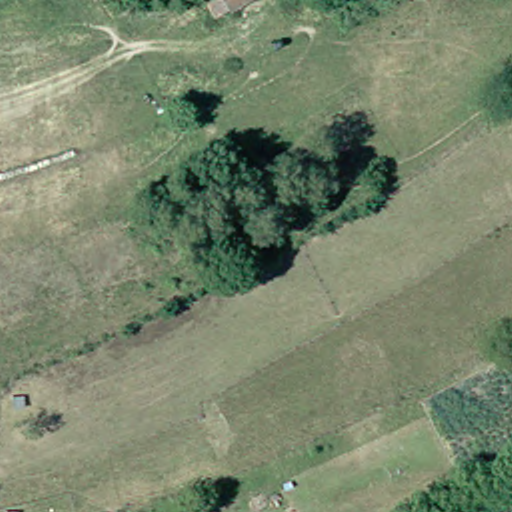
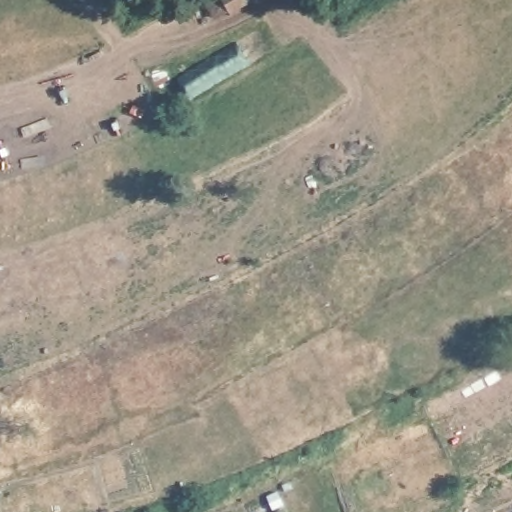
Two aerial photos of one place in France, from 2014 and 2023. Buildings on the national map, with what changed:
unchanged [(507,509),(512,507),(512,512),(507,512),(507,509)]

